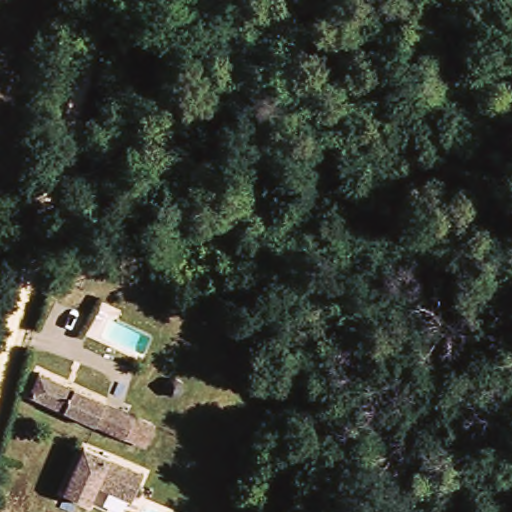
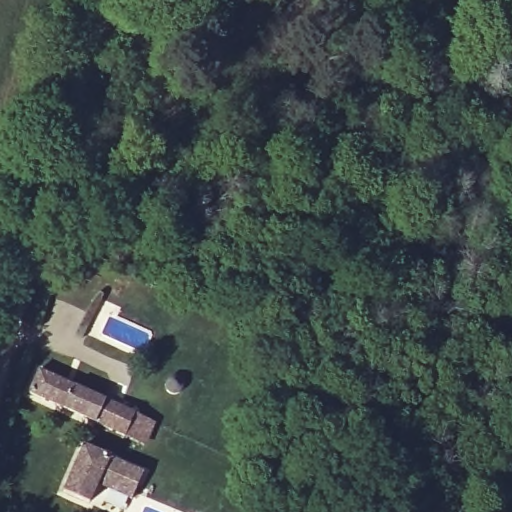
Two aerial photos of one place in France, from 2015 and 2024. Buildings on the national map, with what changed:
unchanged [(113,430),(16,389),(25,366),(123,407),(145,417),(136,439),(113,430)]
unchanged [(156,400),(152,400),(147,398),(143,391),(145,386),(152,382),(157,384),(160,392),(159,396),(156,400)]
unchanged [(122,497),(89,483),(80,502),(55,491),(74,445),(134,469),(122,497)]

